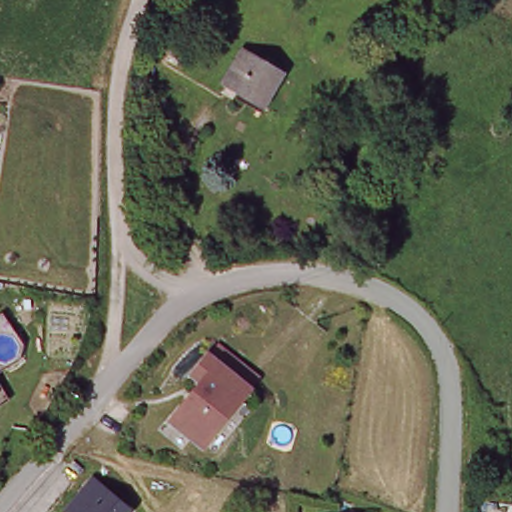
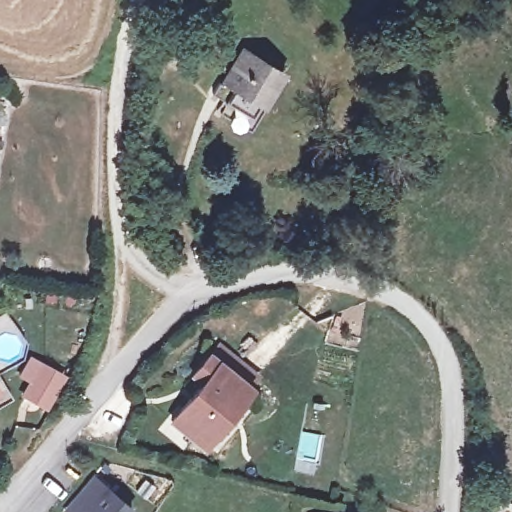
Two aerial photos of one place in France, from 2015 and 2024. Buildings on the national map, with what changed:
unchanged [(182,36),(187,26),(191,28),(202,34),(199,40),(190,55),(187,60),(173,53),(173,52),(182,36)]
unchanged [(264,113),(238,99),(242,90),(226,81),(236,62),(242,51),(275,68),(280,70),(285,75),(264,113)]
unchanged [(200,380),(190,373),(205,356),(248,385),(233,403),(239,408),(208,446),(168,420),(200,380)]
new [(47,414),(18,398),(39,361),(67,376),(47,414)]
unchanged [(11,400),(0,406),(0,383),(11,400)]
unchanged [(96,476),(135,510),(133,512),(66,512),(96,476)]

